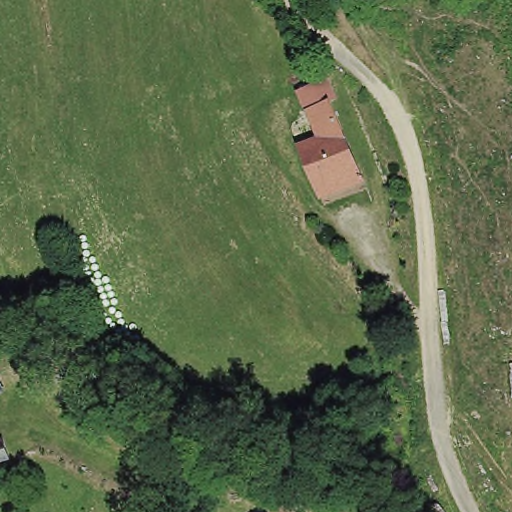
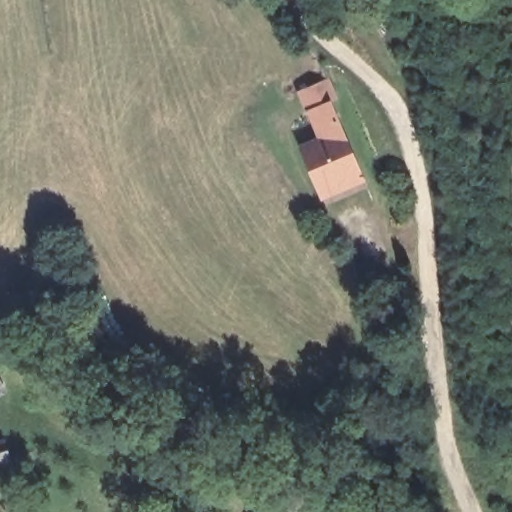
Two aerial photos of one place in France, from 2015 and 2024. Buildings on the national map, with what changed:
unchanged [(322,207),(312,182),(311,183),(303,162),(318,156),(307,128),(310,127),(303,111),(321,103),(328,120),(333,118),(345,146),(362,191),(322,207)]
unchanged [(11,459),(0,462),(0,442),(6,441),(11,459)]
unchanged [(292,487),(303,508),(294,512),(288,512),(279,494),(292,487)]

